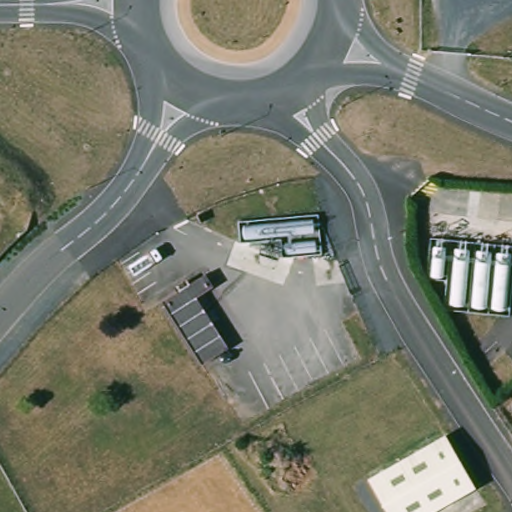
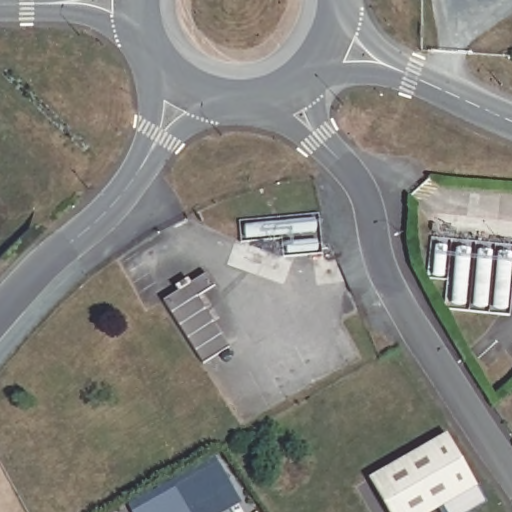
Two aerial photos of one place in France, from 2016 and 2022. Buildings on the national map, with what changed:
unchanged [(210,286),(195,299),(230,343),(206,365),(163,306),(200,274),(210,286)]
unchanged [(369,479),(447,433),(476,488),(432,512),(387,512),(369,479)]
new [(127,505),(214,457),(233,489),(191,512),(131,512),(127,505)]

